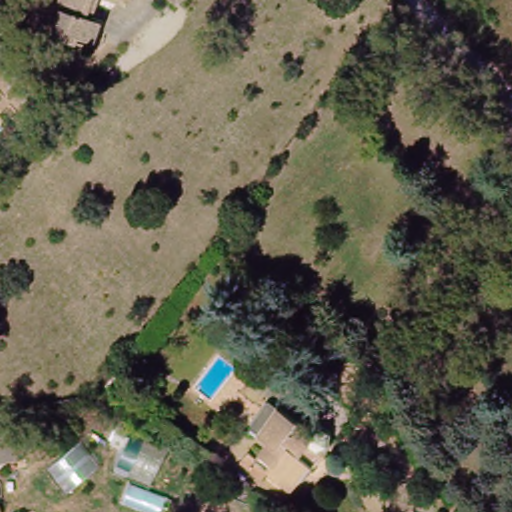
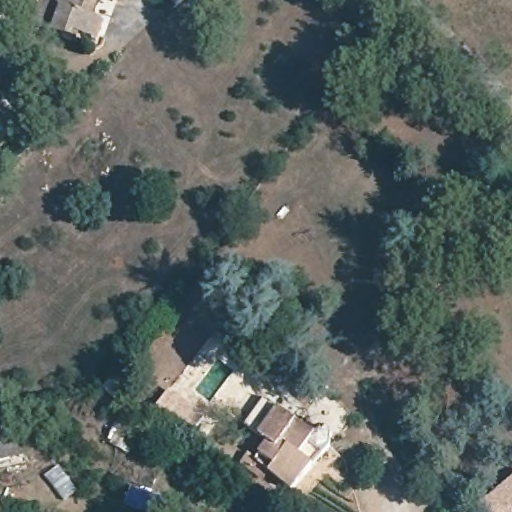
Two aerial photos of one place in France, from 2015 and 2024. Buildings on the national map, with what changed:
unchanged [(57,9),(60,0),(132,0),(128,11),(102,1),(96,22),(61,12),(57,9)]
unchanged [(177,10),(168,0),(188,0),(177,10)]
unchanged [(106,25),(98,45),(82,39),(80,47),(53,37),(61,12),(96,22),(106,25)]
unchanged [(262,469),(265,463),(256,455),(263,443),(254,434),(274,409),(327,443),(286,490),(262,469)]
unchanged [(0,473),(0,441),(5,440),(3,431),(23,428),(24,438),(30,468),(0,473)]
new [(481,512),(477,507),(512,478),(512,512),(481,512)]

